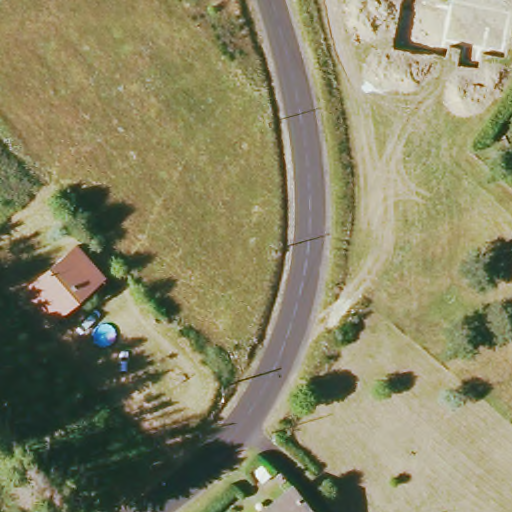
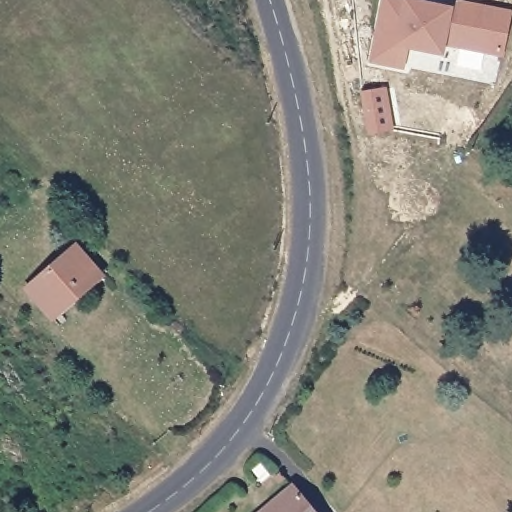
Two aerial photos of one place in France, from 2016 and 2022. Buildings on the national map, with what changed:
new [(512,13),(504,57),(444,44),(443,55),(409,48),(405,69),(369,62),(381,0),(421,0),(447,5),(448,0),(461,0),(512,10),(512,13)]
unchanged [(103,279),(54,321),(31,295),(79,251),(103,279)]
unchanged [(293,490),(311,512),(266,512),(293,490)]

